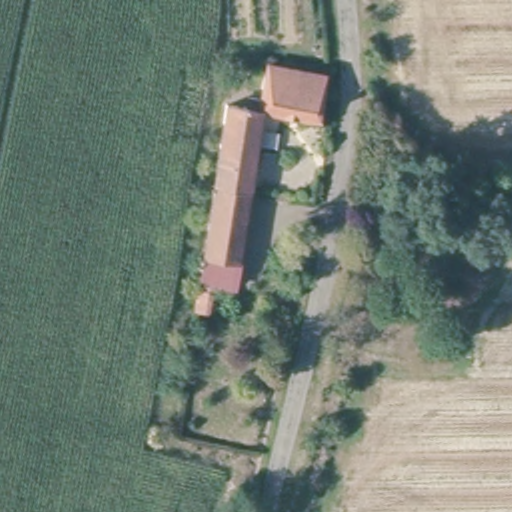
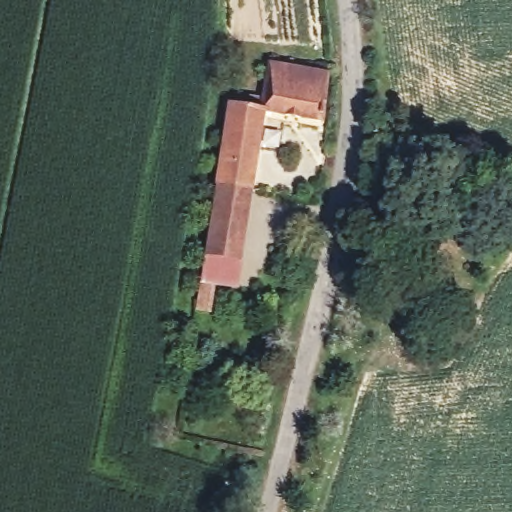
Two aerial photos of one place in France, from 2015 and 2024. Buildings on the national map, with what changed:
unchanged [(322,115),(263,105),(272,60),(330,69),(322,115)]
unchanged [(244,222),(211,217),(231,99),(263,105),(244,222)]
unchanged [(211,217),(244,222),(233,284),(200,278),(211,217)]
unchanged [(194,311),(199,286),(212,288),(209,313),(194,311)]

